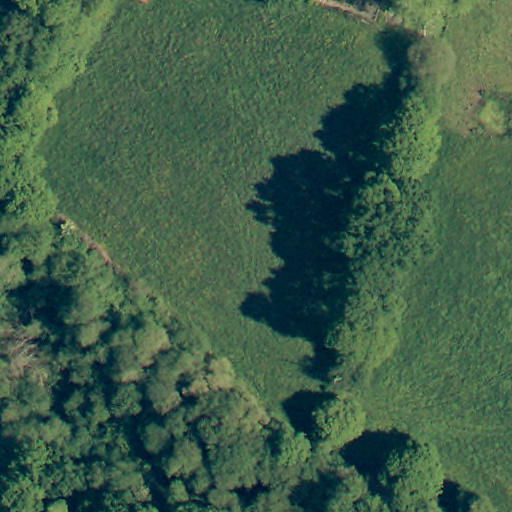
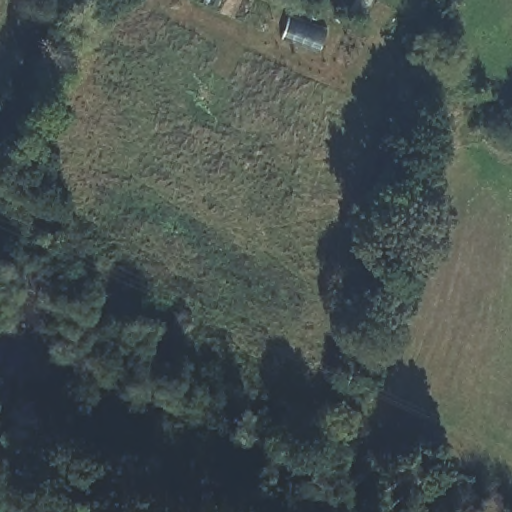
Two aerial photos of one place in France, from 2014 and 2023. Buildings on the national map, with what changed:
[]

